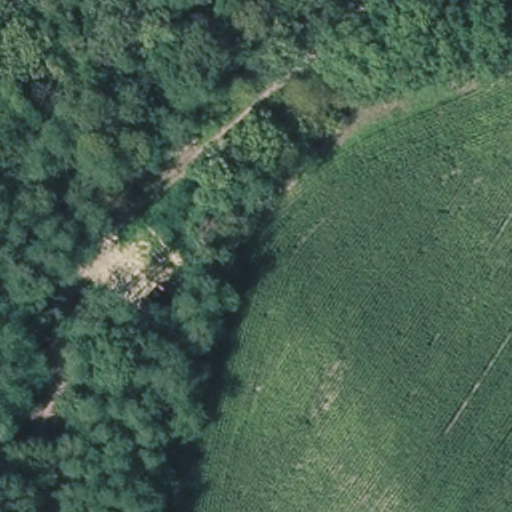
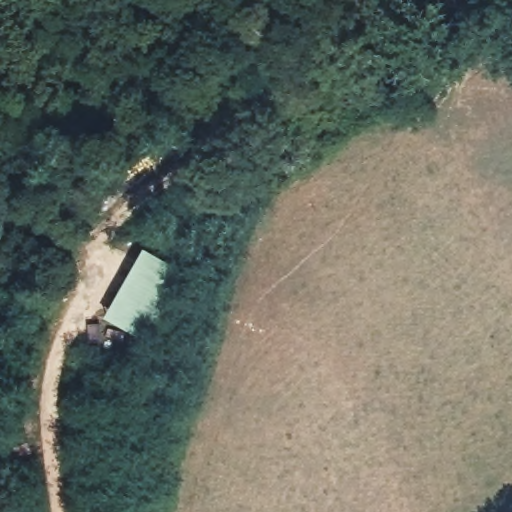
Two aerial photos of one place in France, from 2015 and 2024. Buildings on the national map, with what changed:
new [(148,345),(104,318),(144,249),(186,274),(148,345)]

